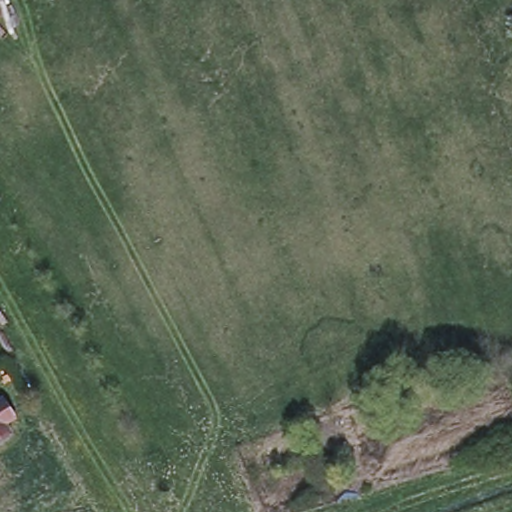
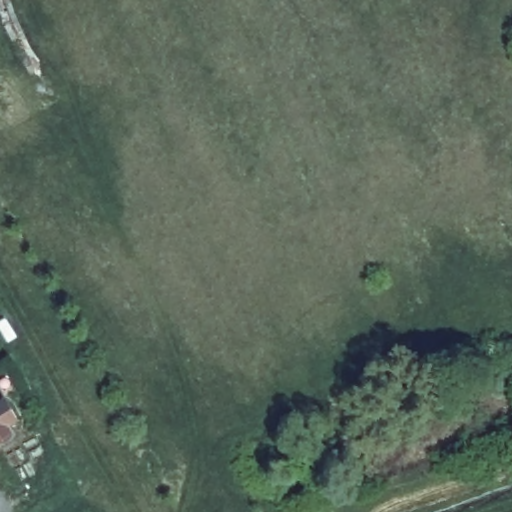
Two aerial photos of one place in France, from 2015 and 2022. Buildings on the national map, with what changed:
unchanged [(0,418),(10,433),(0,440),(0,418)]

